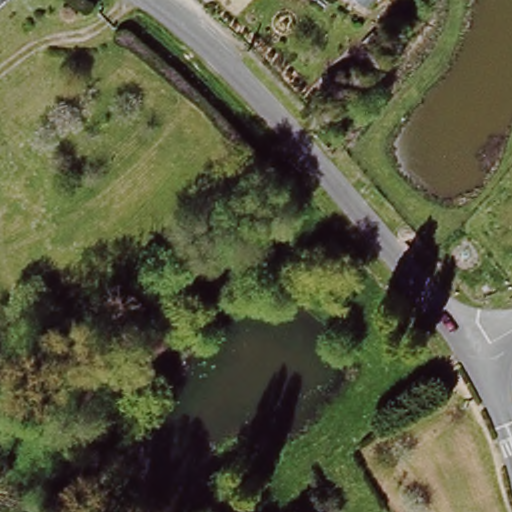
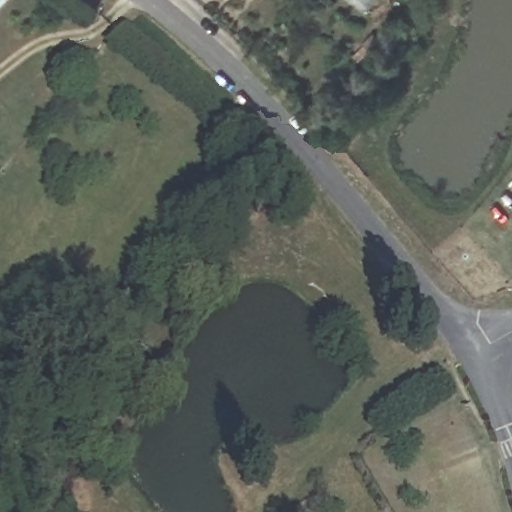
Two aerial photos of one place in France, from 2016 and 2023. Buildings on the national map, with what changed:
[]

